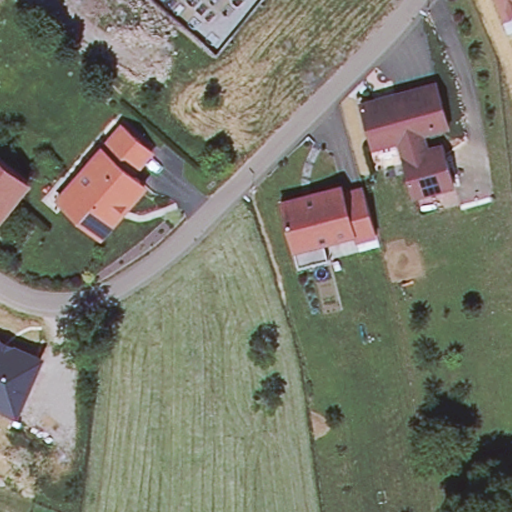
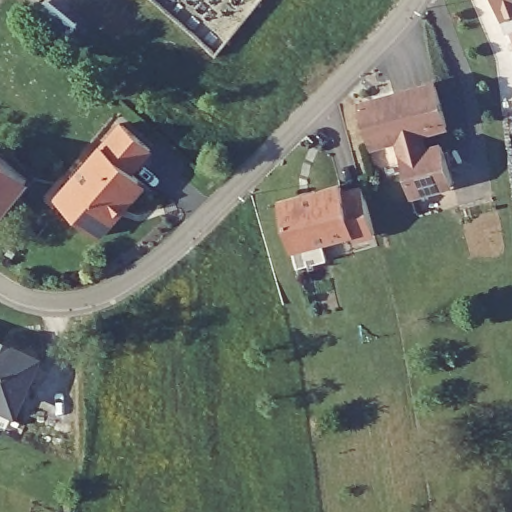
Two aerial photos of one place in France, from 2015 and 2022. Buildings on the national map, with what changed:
unchanged [(494,0),(512,0),(512,29),(505,32),(494,0)]
unchanged [(424,190),(410,194),(400,155),(402,155),(397,138),(370,145),(358,103),(395,93),(408,89),(435,82),(436,84),(447,124),(418,132),(423,149),(441,144),(451,182),(424,190)]
unchanged [(115,219),(97,239),(60,207),(55,202),(71,182),(120,126),(150,152),(130,176),(140,185),(142,187),(115,219)]
unchanged [(29,184),(0,221),(0,161),(29,184)]
unchanged [(295,243),(281,197),(343,180),(345,187),(365,182),(370,201),(377,228),(357,233),(355,226),(323,235),(329,254),(300,262),(295,243)]
unchanged [(45,357),(20,418),(0,410),(0,338),(45,357)]

